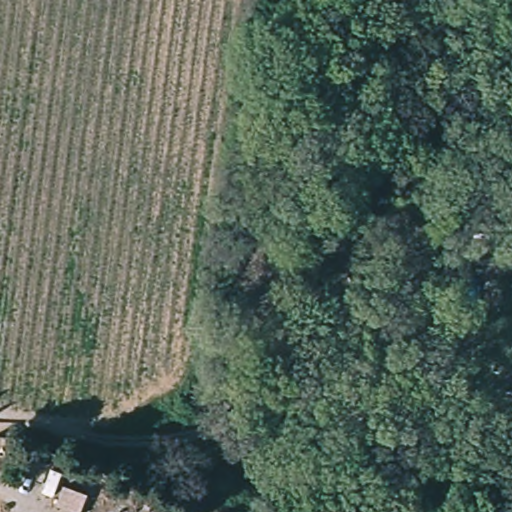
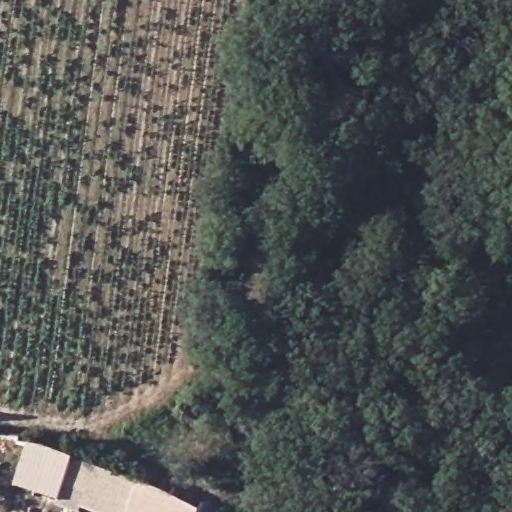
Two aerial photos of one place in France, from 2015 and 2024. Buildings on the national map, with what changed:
unchanged [(390,306),(398,380),(357,384),(349,311),(390,306)]
new [(73,461),(140,485),(195,512),(90,512),(82,508),(80,512),(68,512),(56,508),(56,503),(13,487),(28,447),(49,450),(73,461)]

